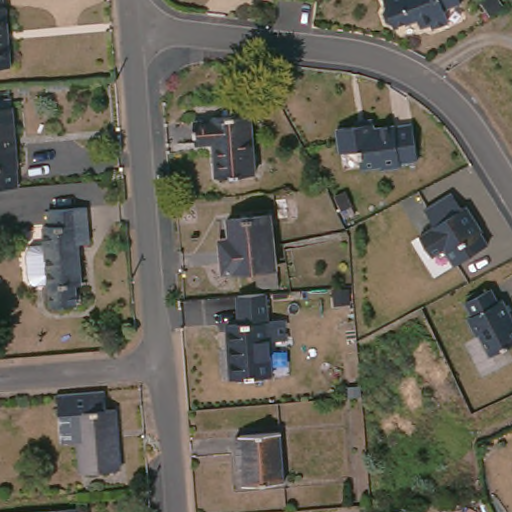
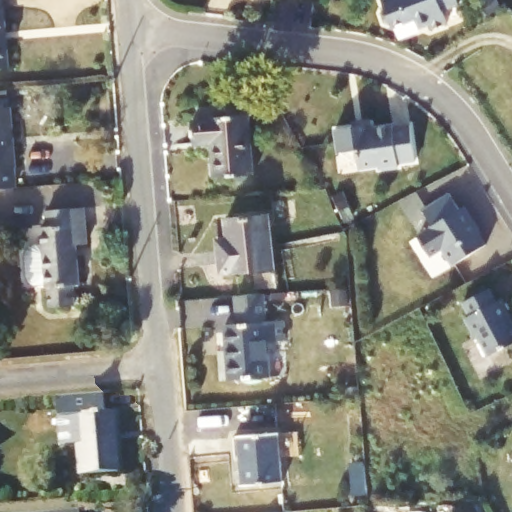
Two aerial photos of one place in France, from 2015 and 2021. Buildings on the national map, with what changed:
unchanged [(7,9),(9,9),(14,68),(0,70),(0,0),(6,0),(7,9)]
unchanged [(456,7),(439,14),(444,27),(428,34),(422,19),(390,32),(389,30),(382,28),(378,19),(383,13),(378,0),(379,0),(452,0),(456,7)]
unchanged [(0,192),(0,108),(19,108),(19,192),(0,192)]
unchanged [(258,175),(221,180),(216,146),(198,148),(195,124),(215,124),(214,117),(250,116),(258,175)]
unchanged [(360,125),(361,122),(377,120),(378,125),(398,122),(399,124),(415,121),(422,158),(405,162),(405,164),(386,167),(384,165),(366,168),(363,149),(345,151),(341,127),(360,125)]
unchanged [(463,211),(468,208),(484,234),(482,235),(489,248),(456,268),(445,250),(433,258),(421,238),(434,231),(433,229),(436,228),(426,212),(454,195),(463,211)]
unchanged [(74,283),(77,296),(54,301),(49,284),(47,285),(46,282),(33,283),(31,281),(29,280),(26,273),(24,254),(27,246),(29,243),(43,242),(42,225),(50,225),(49,209),(84,207),(87,241),(78,242),(81,278),(81,281),(74,283)]
unchanged [(282,271),(230,273),(229,243),(238,242),(238,221),(279,217),(282,271)]
unchanged [(512,344),(486,359),(454,311),(492,289),(512,326),(512,344)]
unchanged [(274,379),(232,381),(229,324),(271,322),(274,379)]
unchanged [(121,467),(84,470),(79,408),(116,406),(121,467)]
unchanged [(284,486),(245,488),(242,438),(281,436),(284,486)]
unchanged [(68,512),(33,512),(68,509),(68,512)]

